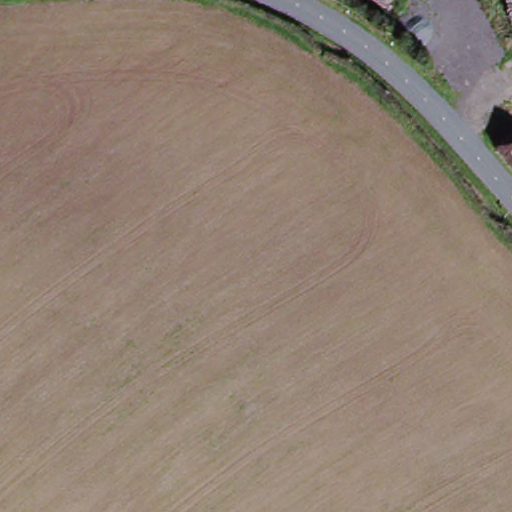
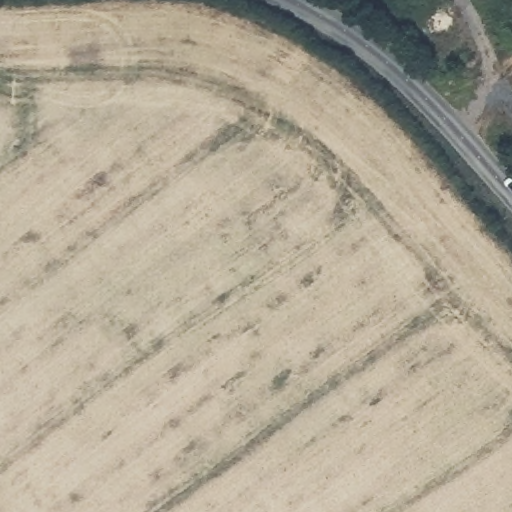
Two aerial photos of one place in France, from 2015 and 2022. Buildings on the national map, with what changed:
unchanged [(512,173),(482,139),(492,130),(504,119),(512,128),(512,173)]

